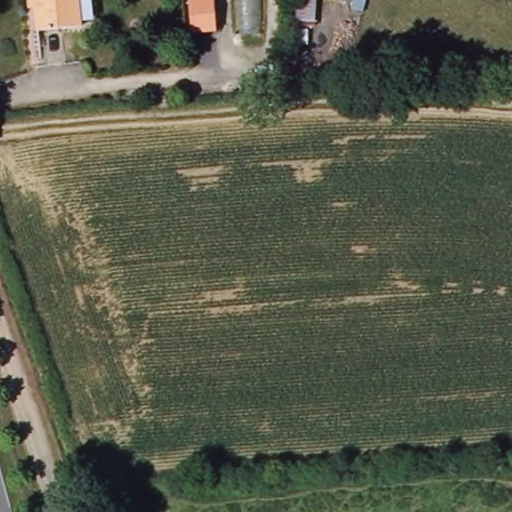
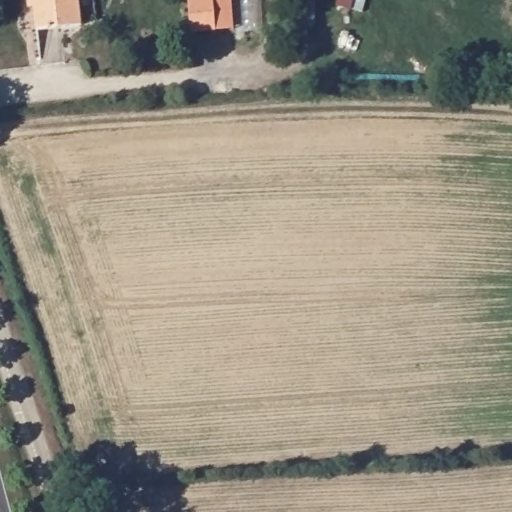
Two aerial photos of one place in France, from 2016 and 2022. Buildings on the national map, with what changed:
unchanged [(97,20),(82,22),(82,25),(38,31),(35,6),(30,7),(29,0),(95,0),(97,20)]
unchanged [(189,0),(214,0),(217,30),(192,33),(189,0)]

